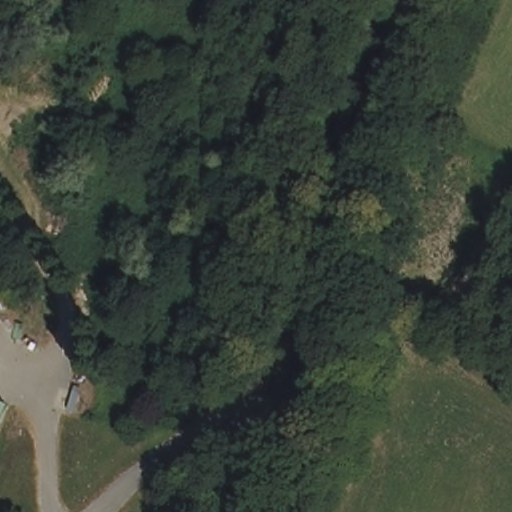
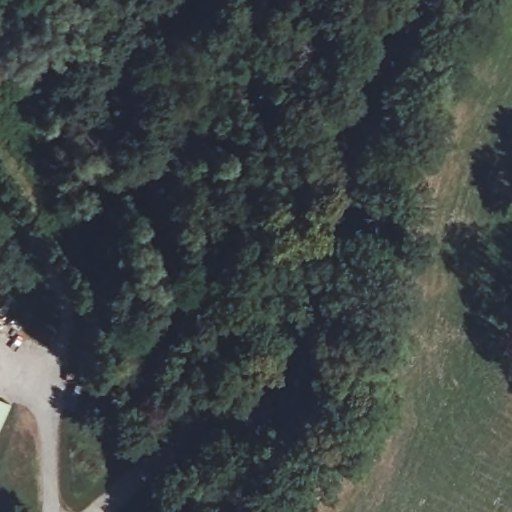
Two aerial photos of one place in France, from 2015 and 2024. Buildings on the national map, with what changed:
unchanged [(9,409),(0,426),(0,404),(9,409)]

